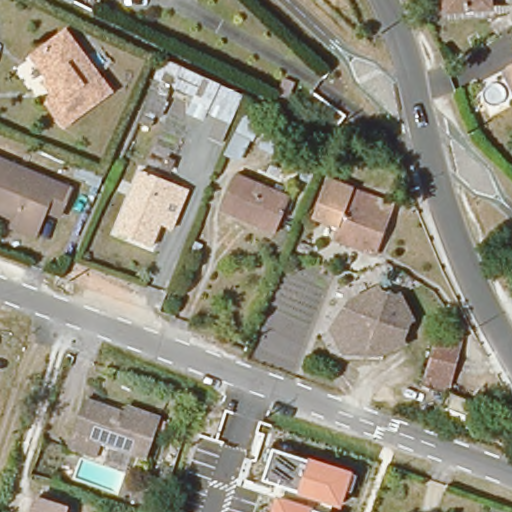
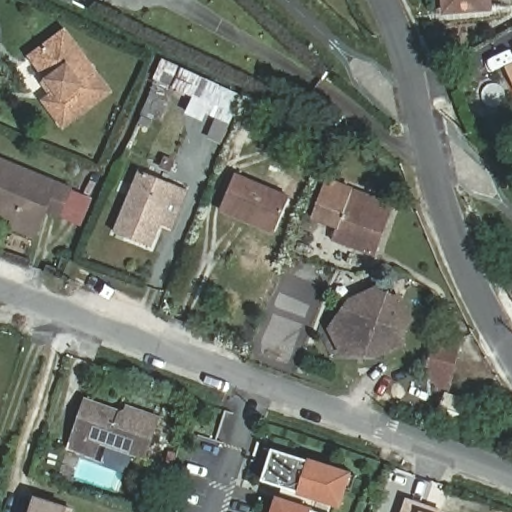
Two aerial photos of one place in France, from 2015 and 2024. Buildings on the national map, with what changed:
unchanged [(71,4),(64,0),(73,0),(71,4)]
unchanged [(445,0),(490,0),(491,9),(445,12),(445,0)]
unchanged [(65,32),(109,91),(64,125),(51,107),(63,98),(58,92),(49,80),(55,75),(38,52),(65,32)]
unchanged [(164,61),(242,96),(220,142),(209,137),(218,117),(191,105),(196,95),(156,77),(164,61)]
unchanged [(512,66),(512,76),(508,67),(512,66)]
unchanged [(284,80),(293,84),(287,98),(278,94),(284,80)]
unchanged [(59,222),(45,217),(38,234),(14,225),(0,218),(0,164),(71,194),(59,222)]
unchanged [(187,189),(171,228),(160,224),(150,247),(115,232),(141,171),(187,189)]
unchanged [(289,197),(275,232),(220,210),(235,174),(289,197)]
unchanged [(314,222),(328,185),(392,208),(373,260),(334,245),(339,232),(314,222)]
unchanged [(328,329),(351,299),(376,287),(378,292),(394,297),(398,296),(409,320),(405,321),(401,341),(403,346),(377,357),(340,355),(328,329)]
unchanged [(461,337),(447,390),(426,385),(439,331),(461,337)]
unchanged [(447,394),(482,408),(473,431),(438,417),(447,394)]
unchanged [(86,405),(122,417),(126,416),(128,412),(159,423),(145,462),(101,446),(95,462),(69,453),(86,405)]
unchanged [(280,486),(264,480),(273,449),(309,458),(352,471),(341,507),(333,505),(331,512),(272,512),(277,495),(280,486)]
new [(443,512),(402,512),(406,497),(444,511),(443,512)]
unchanged [(72,510),(72,512),(33,512),(37,499),(72,510)]

